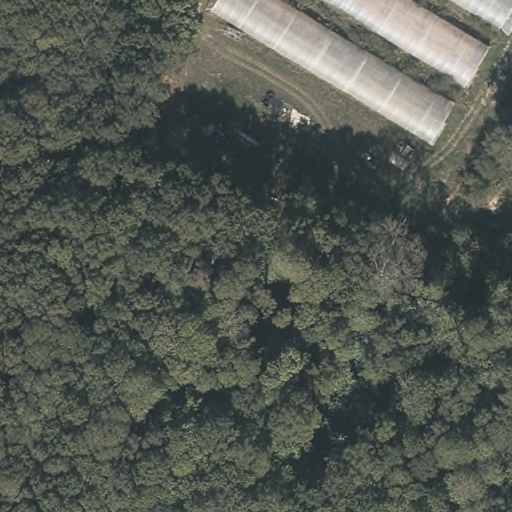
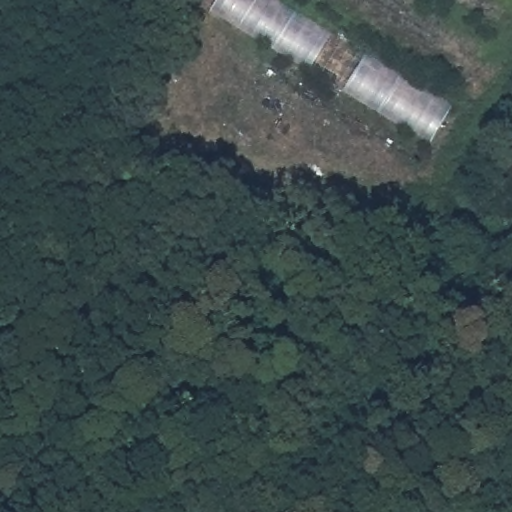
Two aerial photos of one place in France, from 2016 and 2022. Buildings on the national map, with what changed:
unchanged [(450,106),(427,145),(212,10),(219,0),(278,0),(450,106)]
demolished [(488,44),(463,89),(320,0),(412,0),(488,44)]
demolished [(512,5),(497,29),(450,0),(512,0),(512,5)]

